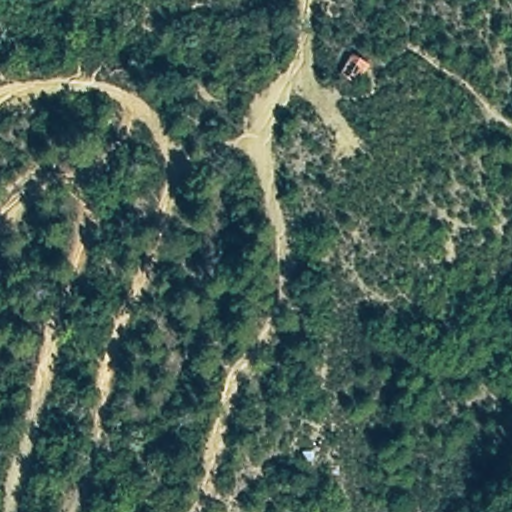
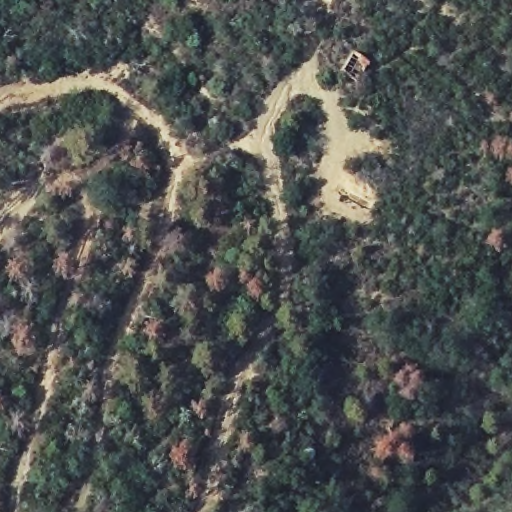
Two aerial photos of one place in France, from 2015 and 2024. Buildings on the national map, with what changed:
unchanged [(369,63),(359,82),(339,73),(350,53),(369,63)]

